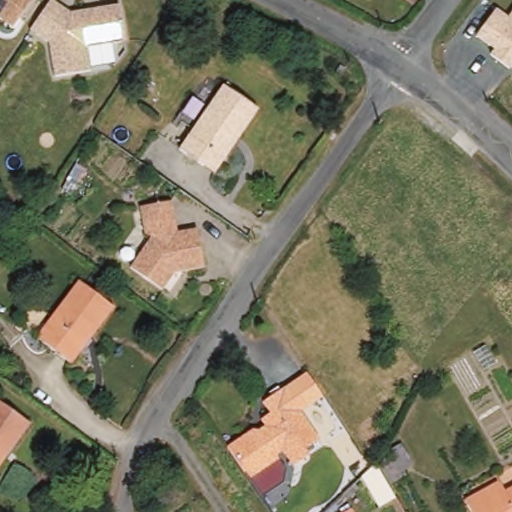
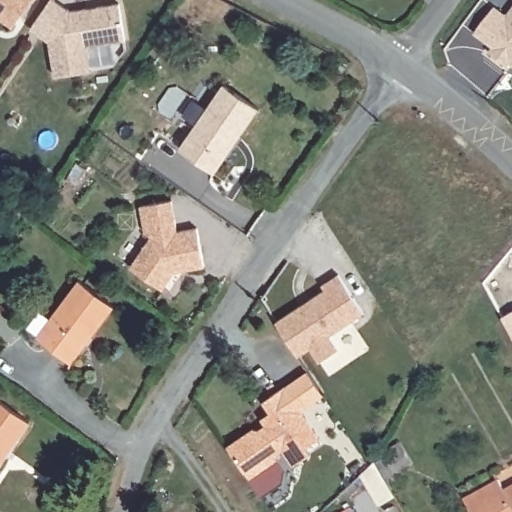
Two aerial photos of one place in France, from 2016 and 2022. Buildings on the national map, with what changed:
unchanged [(0,14),(0,0),(33,0),(16,25),(0,14)]
unchanged [(123,3),(128,39),(90,45),(94,69),(58,75),(52,40),(34,28),(52,0),(59,0),(74,11),(123,3)]
unchanged [(509,69),(490,55),(494,50),(475,36),(495,9),(509,18),(512,13),(512,66),(509,69)]
unchanged [(225,89),(259,114),(216,175),(181,151),(225,89)]
unchanged [(144,225),(139,198),(171,194),(175,225),(196,222),(202,261),(172,265),(159,282),(128,259),(150,229),(144,225)]
new [(325,291),(322,285),(340,274),(363,313),(330,334),(339,350),(319,362),(311,347),(297,357),(276,320),(325,291)]
unchanged [(45,339),(38,333),(51,315),(68,295),(80,279),(114,305),(103,321),(71,361),(45,339)]
new [(504,339),(493,320),(512,308),(512,351),(504,339)]
unchanged [(256,430),(262,426),(259,422),(269,413),(263,403),(286,389),(308,374),(322,398),(323,399),(302,413),(319,439),(303,450),(305,456),(289,466),(279,452),(274,455),(276,460),(248,481),(234,461),(231,456),(227,449),(251,430),(256,430)]
unchanged [(0,464),(0,401),(29,422),(0,464)]
unchanged [(378,467),(377,463),(389,455),(388,451),(401,443),(414,466),(405,474),(407,479),(388,488),(394,500),(378,511),(360,478),(378,467)]
unchanged [(495,482),(503,493),(512,488),(512,512),(487,512),(476,494),(495,482)]
unchanged [(487,512),(462,512),(457,504),(476,494),(487,512)]
unchanged [(324,512),(341,503),(347,512),(325,512),(324,512)]

